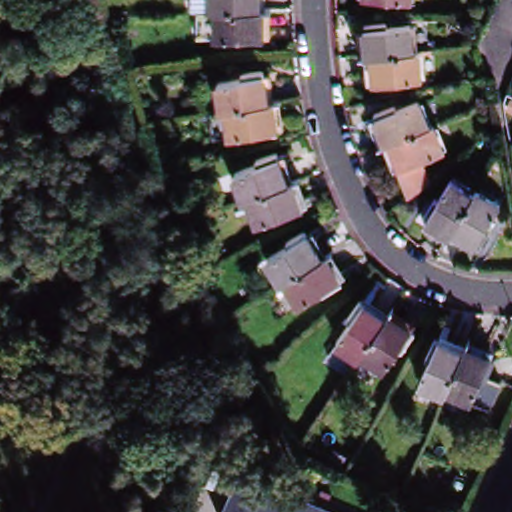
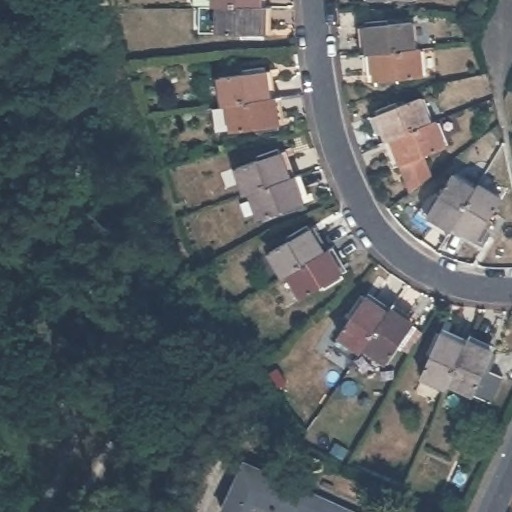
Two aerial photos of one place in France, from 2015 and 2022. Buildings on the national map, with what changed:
unchanged [(198,0),(268,0),(267,8),(240,8),(218,7),(206,7),(198,7),(198,0)]
unchanged [(218,7),(240,8),(267,8),(272,8),(272,38),(249,38),(249,34),(205,34),(206,7),(218,7)]
unchanged [(364,23),(385,20),(386,24),(412,21),(414,49),(373,54),(367,54),(364,23)]
unchanged [(421,76),(397,79),(397,83),(376,84),(373,54),(414,49),(419,49),(421,76)]
unchanged [(220,78),(244,75),(243,70),(264,68),(268,99),(252,101),(228,105),(223,105),(220,78)]
unchanged [(279,129),(256,132),(256,128),(232,131),(228,105),(252,101),(268,99),(275,98),(279,129)]
unchanged [(379,111),(401,103),(403,106),(424,99),(435,124),(397,139),(391,141),(379,111)]
unchanged [(435,124),(439,122),(450,147),(427,156),(435,178),(418,191),(397,139),(435,124)]
unchanged [(236,169),(259,161),(257,156),(277,149),(289,179),(270,185),(249,193),(245,194),(236,169)]
unchanged [(423,214),(434,195),(438,197),(451,175),(474,189),(453,224),(450,229),(423,214)]
unchanged [(304,207),(284,214),(282,210),(259,219),(249,193),(270,185),(289,179),(293,178),(304,207)]
unchanged [(500,199),(488,219),(492,221),(481,241),(453,224),(474,189),(477,185),(500,199)]
unchanged [(269,254),(290,242),(287,239),(306,227),(322,254),(288,275),(284,278),(269,254)]
unchanged [(344,277),(323,290),(321,287),(302,299),(288,275),(322,254),(328,250),(344,277)]
unchanged [(338,337),(352,317),(348,313),(360,296),(387,313),(364,348),(363,349),(361,352),(338,337)]
unchanged [(417,327),(403,347),(399,344),(386,363),(363,349),(364,348),(387,313),(390,309),(417,327)]
unchanged [(420,378),(431,354),(427,352),(436,333),(464,346),(461,353),(448,384),(447,384),(445,389),(420,378)]
unchanged [(448,384),(461,353),(464,346),(466,342),(496,356),(489,372),(501,377),(489,403),(473,396),(447,384),(448,384)]
unchanged [(228,510),(248,463),(357,512),(228,512),(228,510)]

